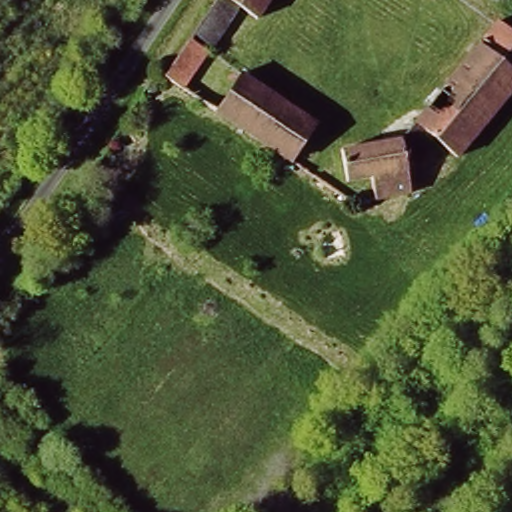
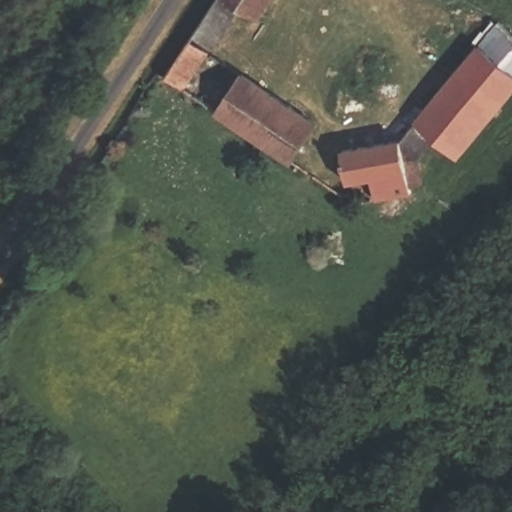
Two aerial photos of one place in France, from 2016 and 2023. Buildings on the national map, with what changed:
unchanged [(269,12),(255,4),(194,97),(168,77),(216,0),(277,0),(269,12)]
unchanged [(512,30),(512,104),(463,164),(431,142),(421,162),(421,194),(375,202),(372,183),(351,185),(343,145),(401,132),(415,123),(475,42),(497,20),(512,30)]
unchanged [(208,100),(239,64),(322,132),(291,169),(208,100)]

